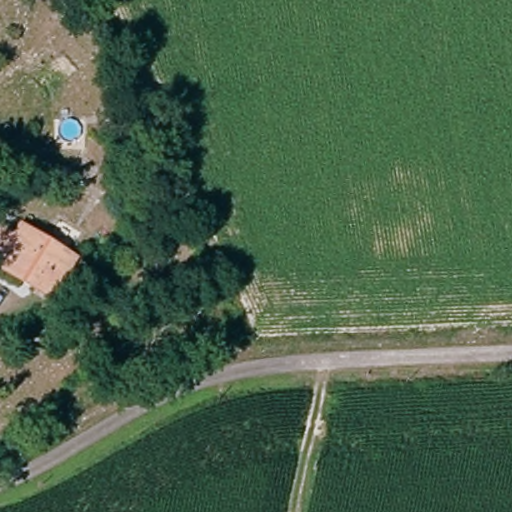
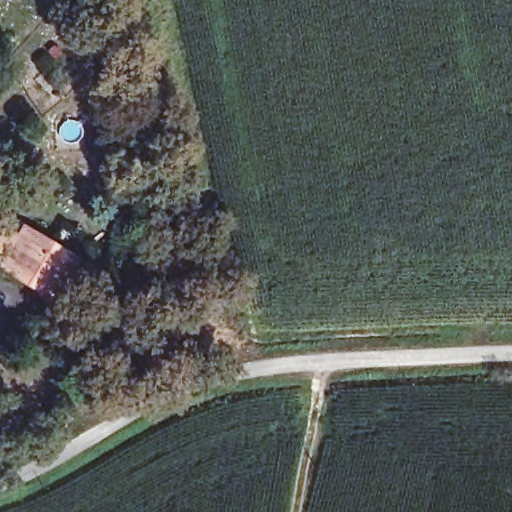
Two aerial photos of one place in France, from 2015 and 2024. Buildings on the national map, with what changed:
unchanged [(0,273),(0,239),(4,234),(14,241),(25,225),(76,259),(50,305),(0,273)]

